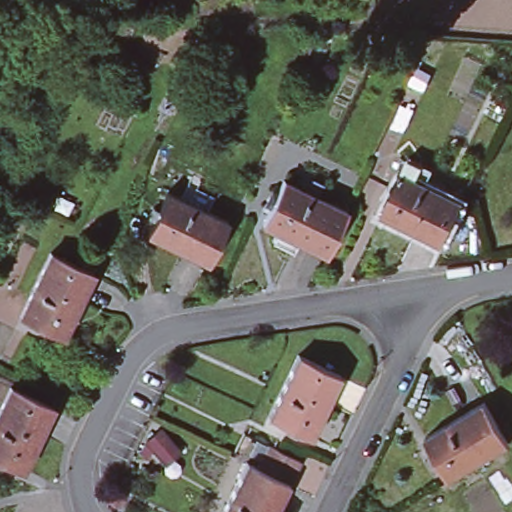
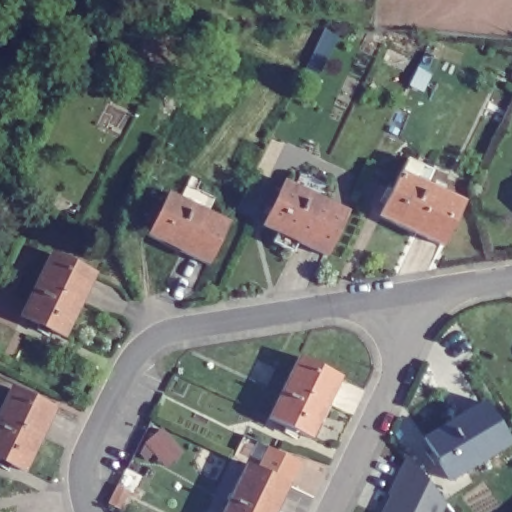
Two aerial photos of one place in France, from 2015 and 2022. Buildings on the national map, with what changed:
unchanged [(442,247),(382,220),(402,177),(405,178),(410,166),(432,176),(427,188),(462,204),(442,247)]
unchanged [(293,188),(317,199),(344,212),(322,255),(277,232),(263,225),(284,183),(293,188)]
unchanged [(206,265),(145,236),(165,194),(179,200),(185,186),(213,199),(207,213),(227,222),(206,265)]
unchanged [(94,276),(65,337),(20,318),(50,256),(94,276)]
unchanged [(342,379),(312,439),(269,418),(299,358),(342,379)]
unchanged [(50,416),(22,476),(0,466),(0,410),(7,395),(50,416)]
unchanged [(485,401),(510,441),(452,477),(427,437),(485,401)]
unchanged [(255,474),(265,453),(296,468),(286,489),(275,512),(222,512),(244,468),(255,474)]
new [(445,505),(442,512),(382,512),(407,456),(445,505)]

